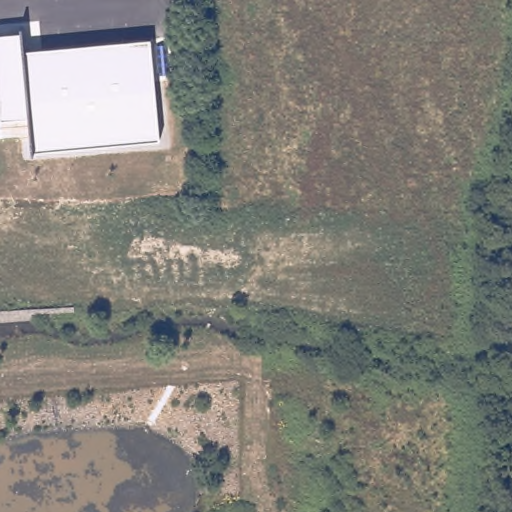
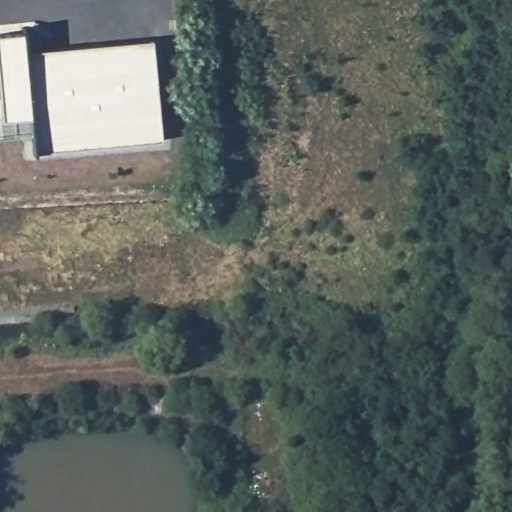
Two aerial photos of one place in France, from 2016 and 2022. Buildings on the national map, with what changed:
unchanged [(31,151),(27,115),(0,118),(0,113),(0,32),(18,30),(21,51),(151,39),(159,136),(31,151)]

